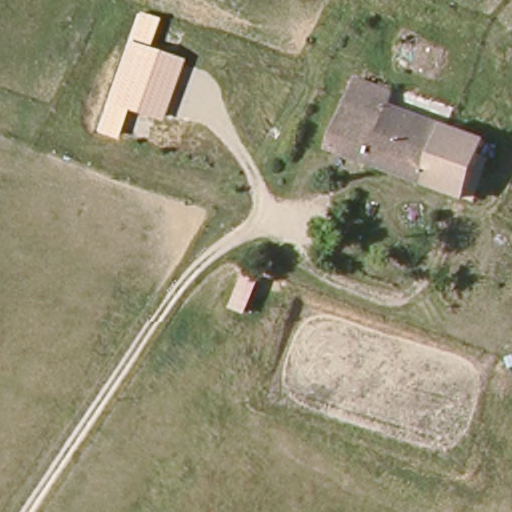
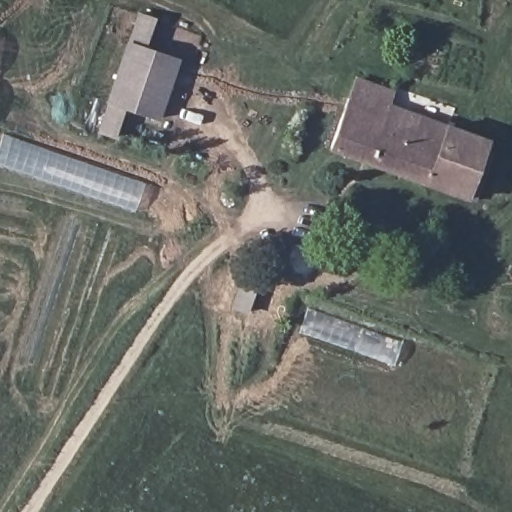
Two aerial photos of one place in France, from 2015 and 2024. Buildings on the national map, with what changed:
unchanged [(160,120),(126,109),(115,136),(96,130),(107,102),(128,41),(138,12),(156,17),(147,47),(182,58),(160,120)]
unchanged [(468,194),(349,151),(344,160),(331,156),(351,102),(359,81),(396,93),(392,106),(488,142),(468,194)]
new [(144,183),(134,211),(0,163),(0,140),(2,133),(144,183)]

